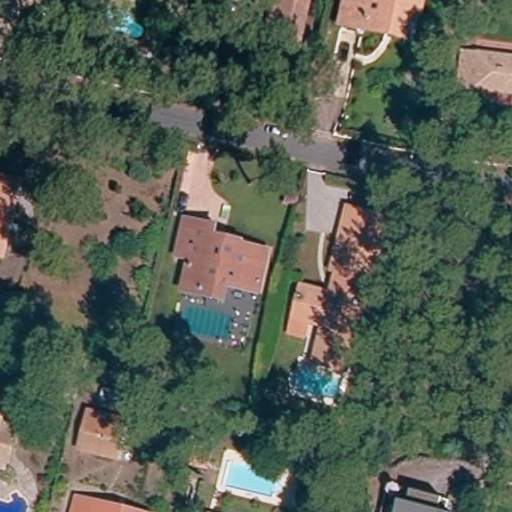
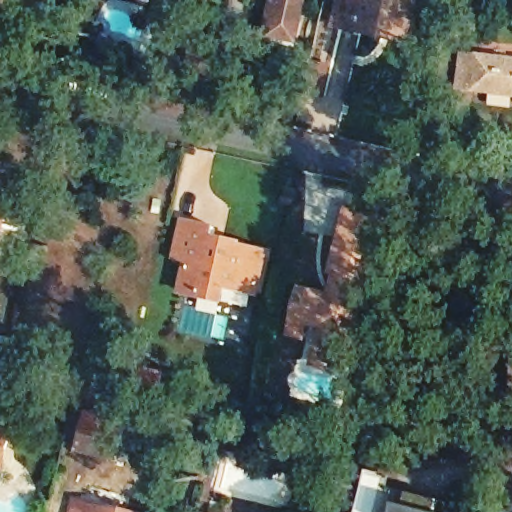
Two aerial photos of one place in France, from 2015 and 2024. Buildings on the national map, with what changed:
unchanged [(164,0),(176,0),(175,2),(164,0)]
unchanged [(305,2),(296,38),(273,32),(281,0),(300,0),(305,2)]
unchanged [(341,20),(346,0),(418,0),(411,30),(386,25),(385,30),(341,20)]
unchanged [(460,92),(465,60),(512,66),(512,99),(460,92)]
unchanged [(0,244),(0,181),(15,184),(0,244)]
unchanged [(388,219),(352,372),(313,364),(321,326),(289,319),(296,284),(328,291),(344,209),(388,219)]
unchanged [(212,295),(210,302),(188,298),(195,265),(182,262),(189,233),(219,240),(218,244),(246,250),(246,253),(272,258),(263,299),(231,292),(230,299),(212,295)]
unchanged [(508,355),(512,356),(512,393),(505,392),(508,355)]
unchanged [(142,370),(162,375),(159,387),(139,383),(142,370)]
unchanged [(77,405),(66,401),(71,380),(82,383),(77,405)]
unchanged [(103,390),(124,395),(120,408),(100,403),(103,390)]
unchanged [(79,452),(89,415),(126,424),(116,462),(79,452)]
unchanged [(0,431),(11,434),(7,454),(3,473),(0,473),(0,431)]
unchanged [(341,486),(335,511),(323,507),(329,483),(341,486)]
unchanged [(388,486),(411,492),(406,512),(382,512),(388,486)]
unchanged [(411,492),(441,500),(438,512),(406,512),(411,492)]
unchanged [(93,512),(78,512),(79,508),(93,512)]

